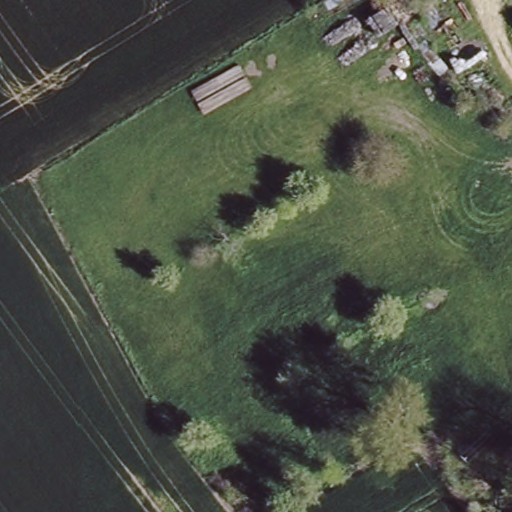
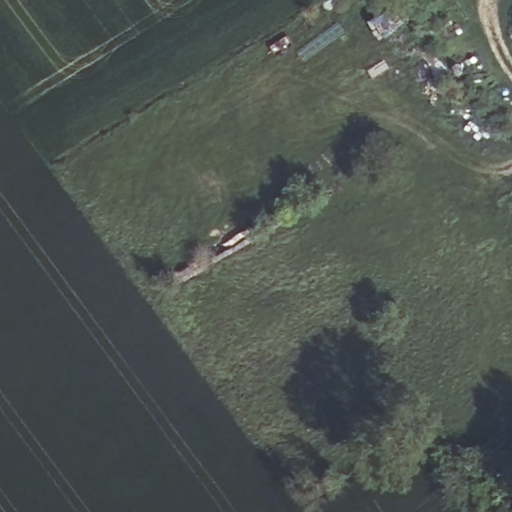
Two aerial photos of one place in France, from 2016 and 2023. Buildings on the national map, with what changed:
[]

